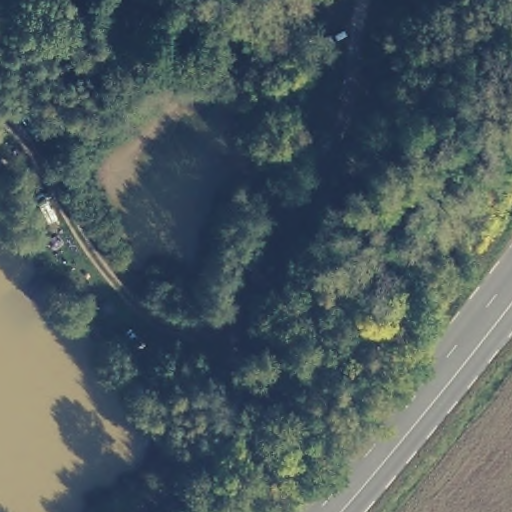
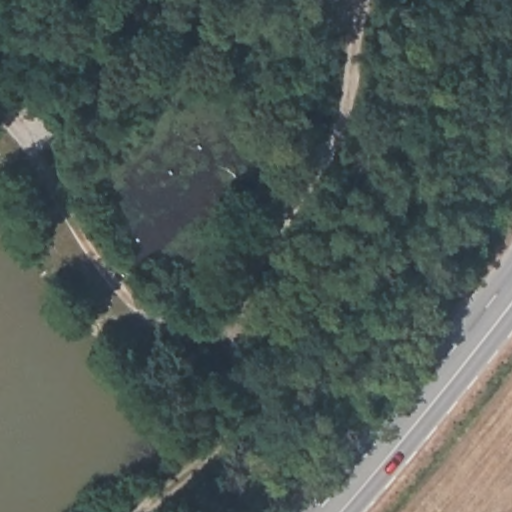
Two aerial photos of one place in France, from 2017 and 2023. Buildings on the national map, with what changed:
[]

